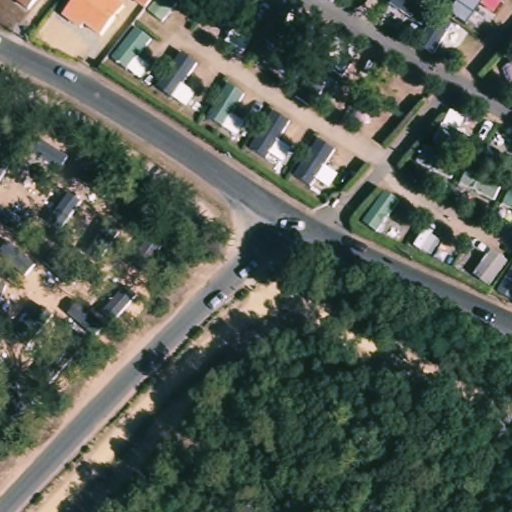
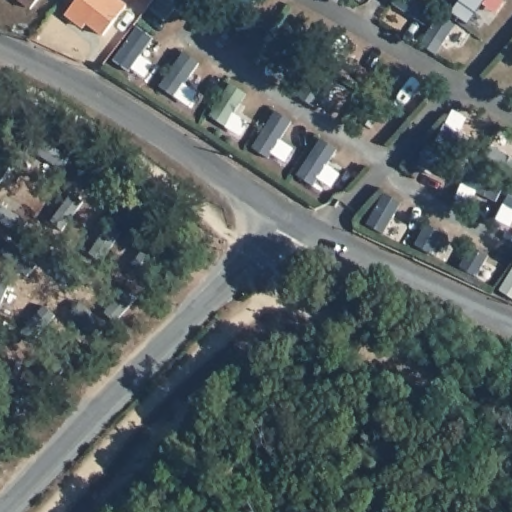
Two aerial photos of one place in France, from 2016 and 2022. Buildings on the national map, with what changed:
unchanged [(22,0),(41,0),(34,10),(22,0)]
unchanged [(73,15),(85,0),(117,0),(131,10),(107,41),(90,29),(86,34),(69,20),(73,15)]
unchanged [(129,0),(156,0),(146,13),(129,0)]

